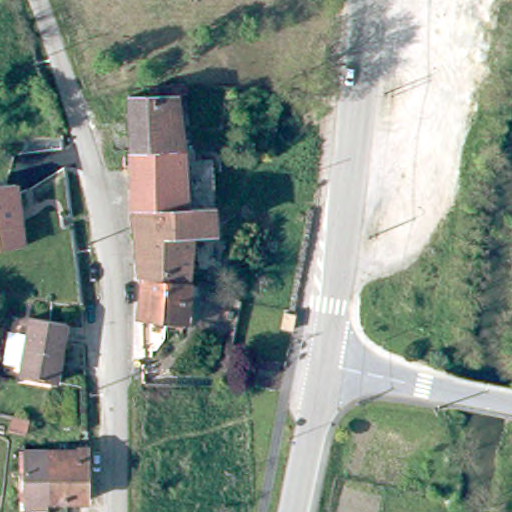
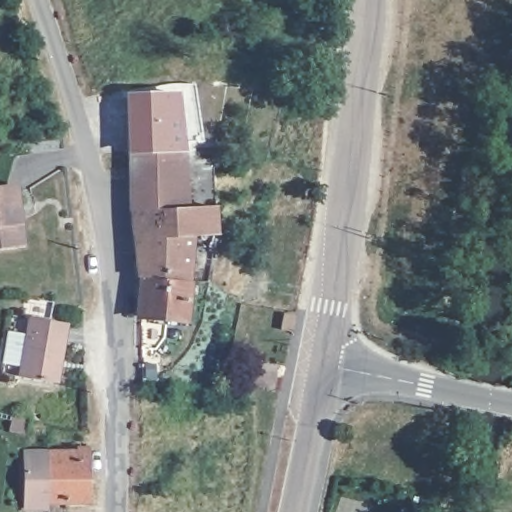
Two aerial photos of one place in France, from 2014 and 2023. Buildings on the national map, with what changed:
unchanged [(189,93),(189,104),(180,105),(182,150),(134,154),(132,102),(154,102),(154,93),(189,93)]
unchanged [(219,205),(220,233),(198,233),(198,232),(144,241),(139,213),(134,154),(182,150),(185,206),(219,205)]
unchanged [(9,181),(20,189),(20,200),(14,200),(16,219),(22,219),(25,241),(0,245),(0,181),(9,181)]
unchanged [(165,280),(156,279),(150,279),(144,241),(198,232),(198,233),(197,284),(165,280)]
unchanged [(195,326),(175,326),(175,317),(173,317),(169,316),(165,315),(160,313),(155,306),(156,279),(165,280),(197,284),(195,326)]
unchanged [(13,364),(17,335),(26,336),(34,337),(35,319),(73,323),(67,381),(29,378),(30,366),(25,366),(13,364)]
unchanged [(24,419),(26,409),(43,413),(40,423),(24,419)]
unchanged [(32,497),(27,497),(27,454),(32,454),(82,455),(92,455),(92,462),(92,498),(54,497),(54,506),(31,505),(32,497)]

